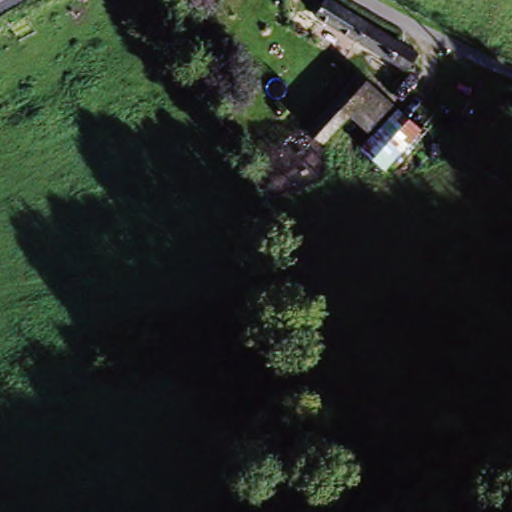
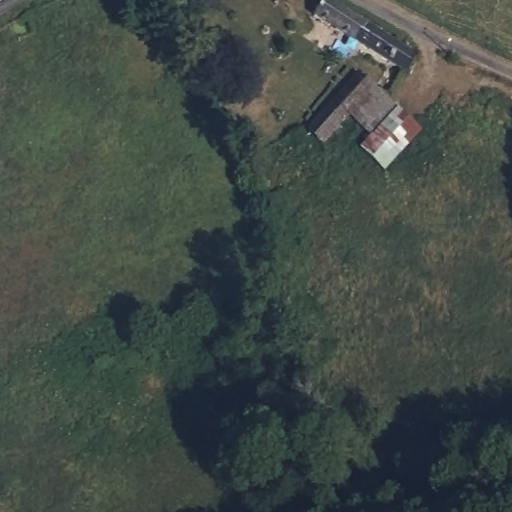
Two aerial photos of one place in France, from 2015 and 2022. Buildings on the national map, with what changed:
unchanged [(415,51),(409,65),(333,25),(340,8),(415,51)]
unchanged [(362,81),(405,117),(387,139),(365,120),(340,149),(319,132),(362,81)]

